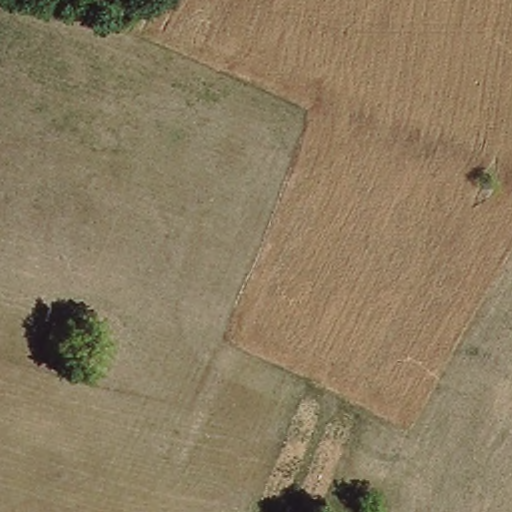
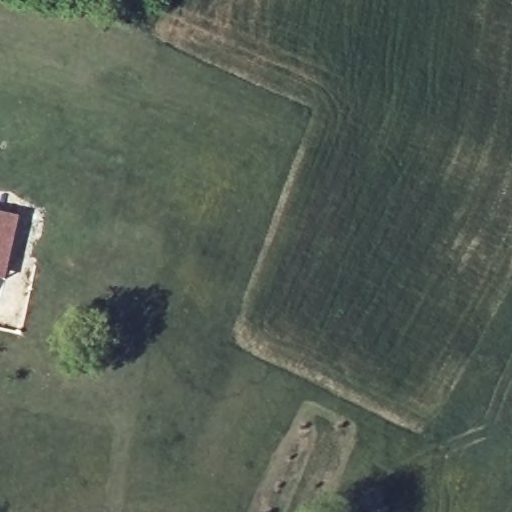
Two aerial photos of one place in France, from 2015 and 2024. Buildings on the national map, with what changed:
new [(21,218),(7,280),(0,279),(0,213),(21,218)]

